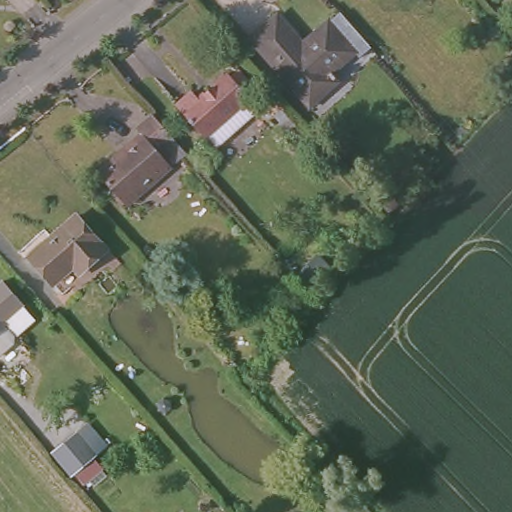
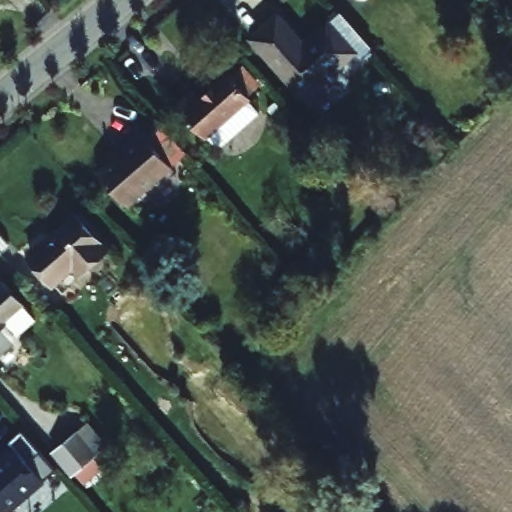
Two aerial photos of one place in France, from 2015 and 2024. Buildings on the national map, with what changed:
unchanged [(349,52),(326,72),(331,78),(329,80),(331,82),(304,105),(246,38),(273,15),(293,39),(298,44),(323,21),(349,52)]
unchanged [(217,146),(208,135),(206,137),(176,105),(193,91),(199,99),(228,72),(250,97),(248,98),(258,109),(217,146)]
unchanged [(288,131),(278,118),(284,113),(294,126),(288,131)]
unchanged [(125,208),(96,176),(140,137),(135,131),(151,117),(185,156),(125,208)]
unchanged [(399,206),(387,213),(380,202),(393,195),(399,206)]
unchanged [(79,273),(73,266),(52,284),(29,257),(76,216),(106,250),(79,273)]
unchanged [(10,333),(1,323),(0,325),(0,284),(18,304),(16,306),(27,318),(10,333)]
unchanged [(8,335),(8,342),(0,349),(0,327),(8,335)]
unchanged [(171,408),(165,412),(159,410),(158,403),(163,399),(169,401),(171,408)]
unchanged [(107,445),(95,455),(88,422),(107,445)]
unchanged [(73,475),(53,451),(76,432),(95,455),(73,475)]
new [(43,480),(46,483),(11,512),(2,512),(0,509),(0,462),(15,450),(27,462),(41,452),(56,469),(43,480)]

